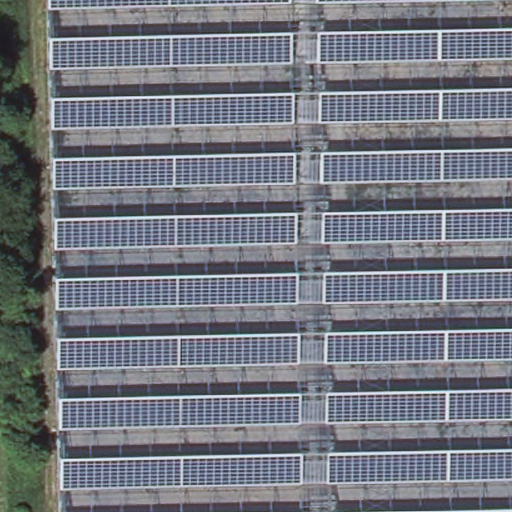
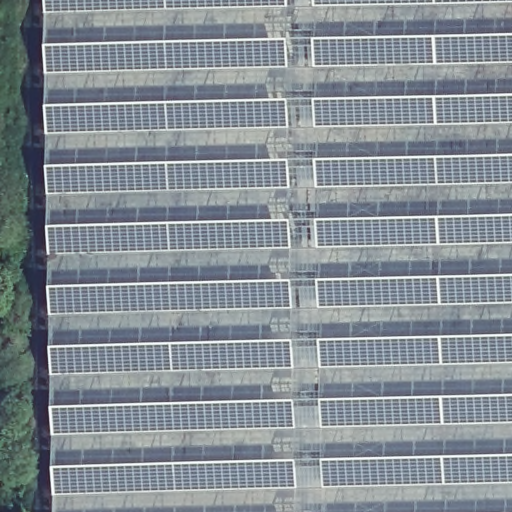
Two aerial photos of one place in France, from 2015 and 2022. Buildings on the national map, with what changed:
unchanged [(512,512),(56,512),(44,0),(512,0),(512,512)]

